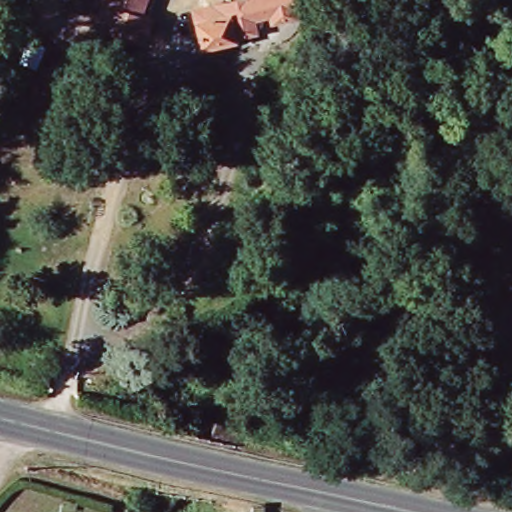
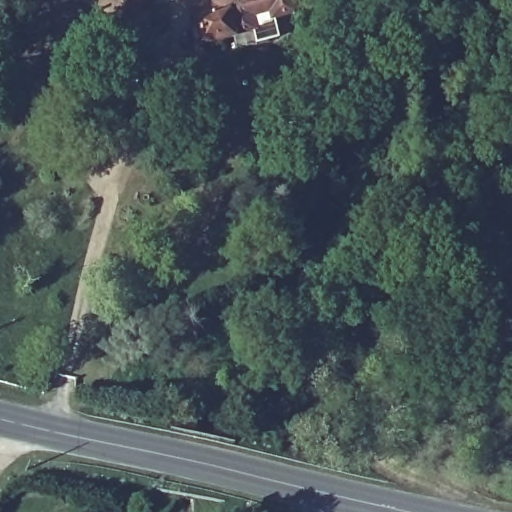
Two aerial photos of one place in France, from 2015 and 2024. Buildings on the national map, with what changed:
unchanged [(139,11),(151,16),(141,39),(97,20),(105,0),(143,0),(139,11)]
unchanged [(290,15),(255,24),(258,37),(223,46),(214,5),(237,0),(287,0),(290,15)]

